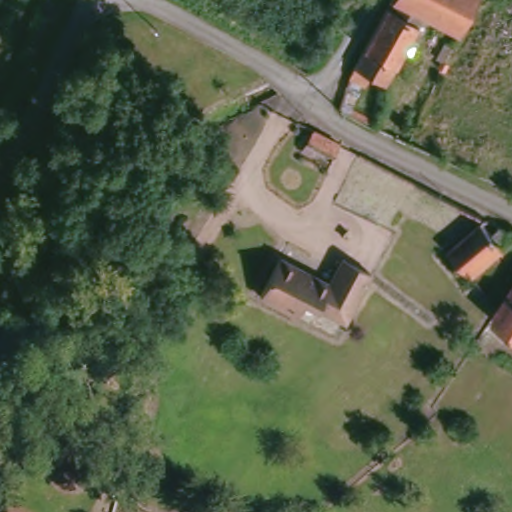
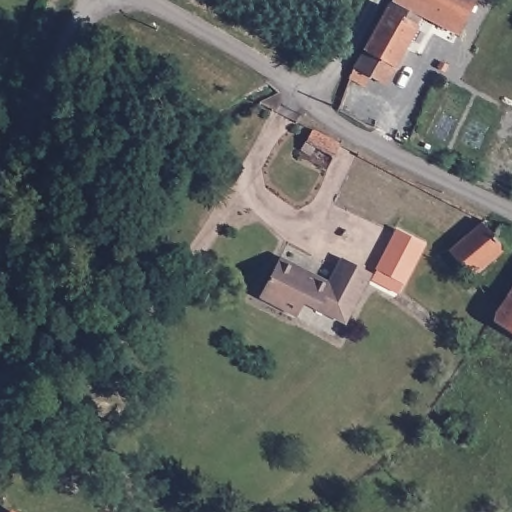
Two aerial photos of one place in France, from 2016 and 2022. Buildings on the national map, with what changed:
unchanged [(46,0),(56,0),(60,2),(53,15),(41,7),(46,0)]
unchanged [(352,98),(368,107),(364,115),(339,101),(351,61),(354,57),(385,0),(470,0),(457,25),(422,7),(384,76),(369,67),(364,77),(360,76),(352,98)]
unchanged [(448,66),(444,72),(437,68),(439,61),(448,66)]
unchanged [(338,144),(332,156),(315,148),(311,154),(301,149),(312,130),(338,144)]
unchanged [(512,232),(466,271),(444,245),(477,217),(487,228),(494,222),(512,232)]
new [(372,277),(376,268),(398,229),(424,242),(403,282),(399,291),(372,277)]
unchanged [(276,252),(324,277),(336,252),(365,267),(339,317),(299,297),(291,310),(254,290),(276,252)]
unchanged [(493,303),(512,276),(512,332),(488,315),(493,303)]
unchanged [(5,506),(16,512),(2,512),(5,506)]

